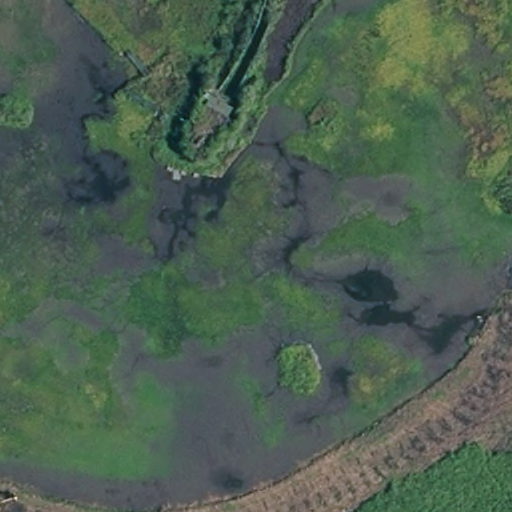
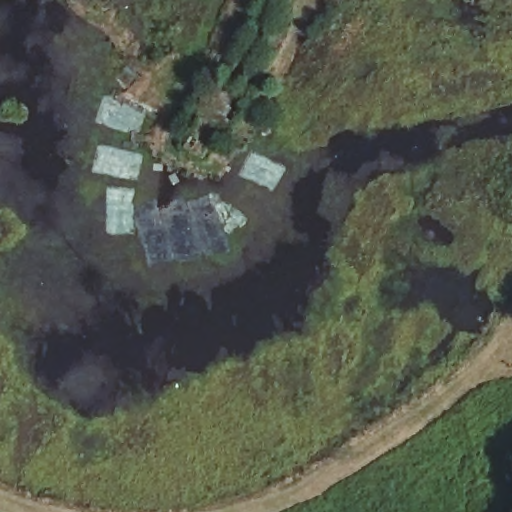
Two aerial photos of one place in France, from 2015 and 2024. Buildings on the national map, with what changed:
unchanged [(207,155),(182,141),(210,102),(230,116),(207,155)]

